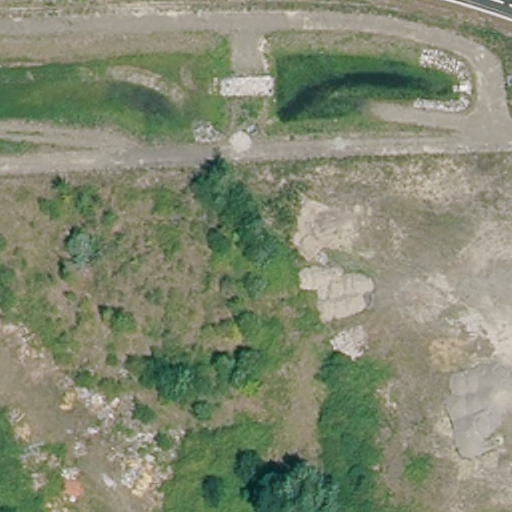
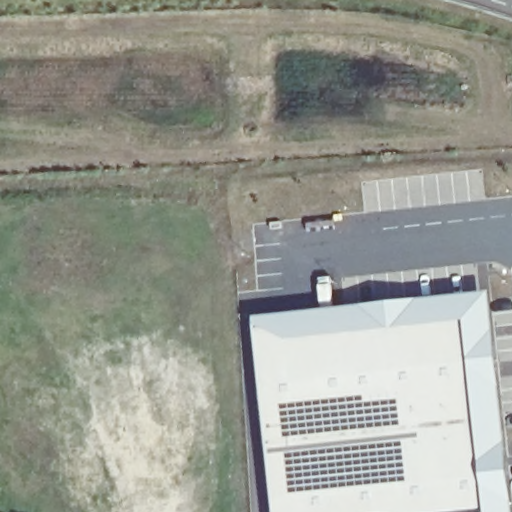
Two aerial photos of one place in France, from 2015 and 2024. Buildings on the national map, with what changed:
new [(512,512),(276,512),(256,319),(491,293),(512,486),(512,512)]

